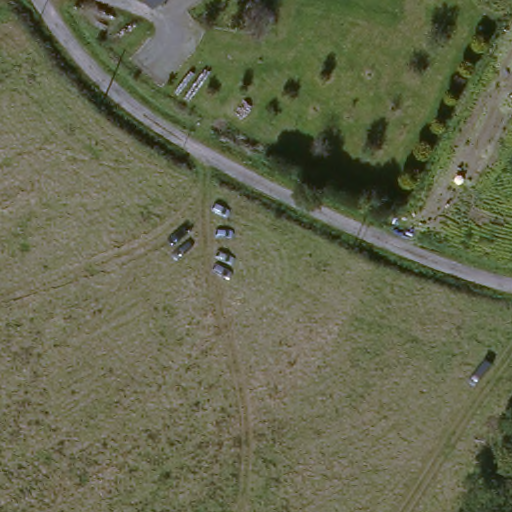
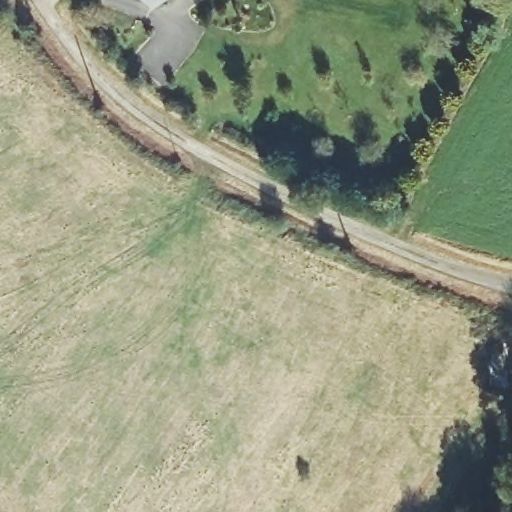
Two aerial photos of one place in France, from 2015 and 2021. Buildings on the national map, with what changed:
unchanged [(142,18),(128,0),(166,0),(142,18)]

